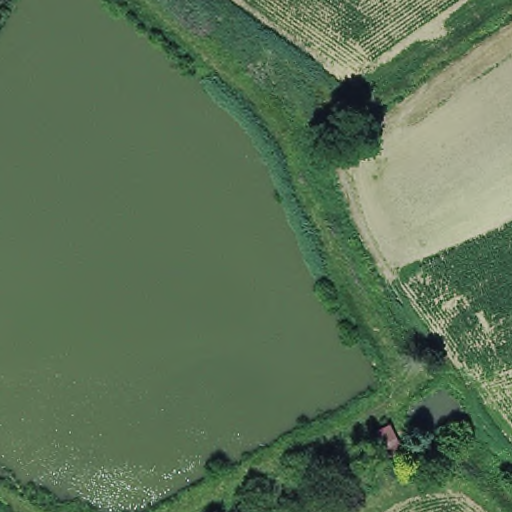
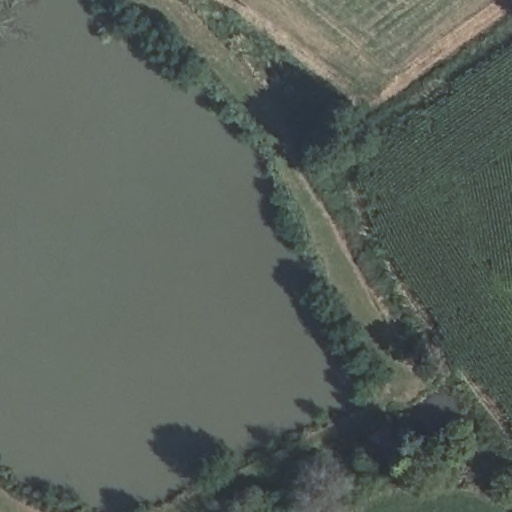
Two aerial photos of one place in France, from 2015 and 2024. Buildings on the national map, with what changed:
unchanged [(383,461),(374,443),(370,435),(388,426),(392,435),(400,452),(383,461)]

